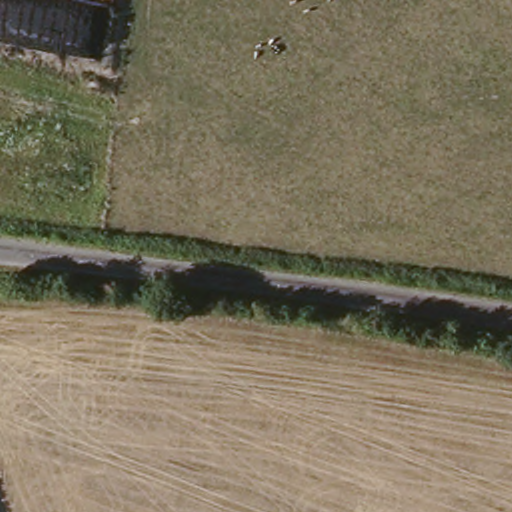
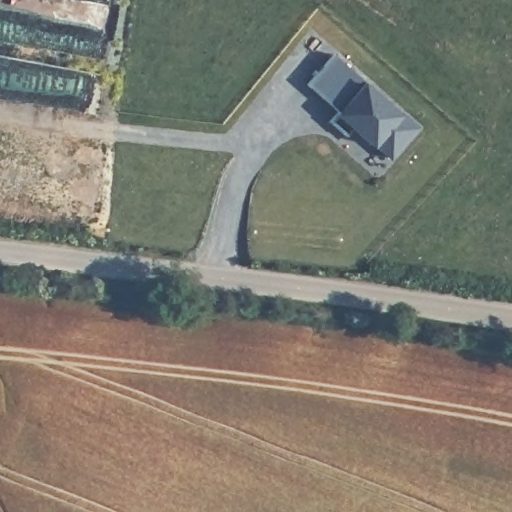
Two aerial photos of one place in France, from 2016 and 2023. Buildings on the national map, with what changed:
new [(308,84),(332,57),(398,116),(417,127),(396,152),(388,145),(374,144),(371,147),(332,114),(336,109),(308,84)]

